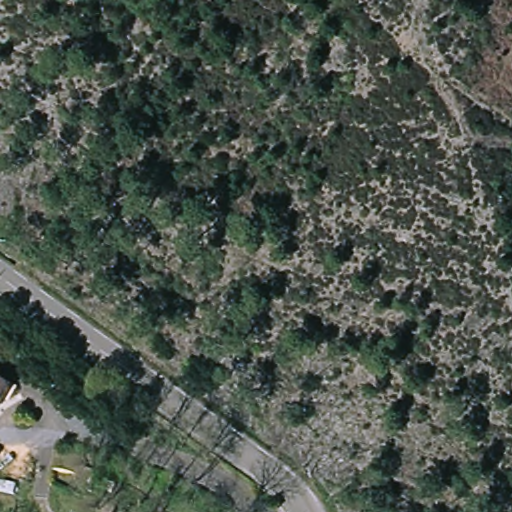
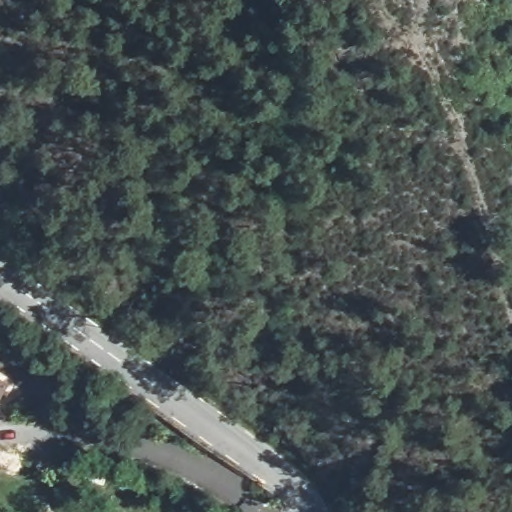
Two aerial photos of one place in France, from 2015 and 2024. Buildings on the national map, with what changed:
unchanged [(0,397),(0,382),(7,387),(0,397)]

